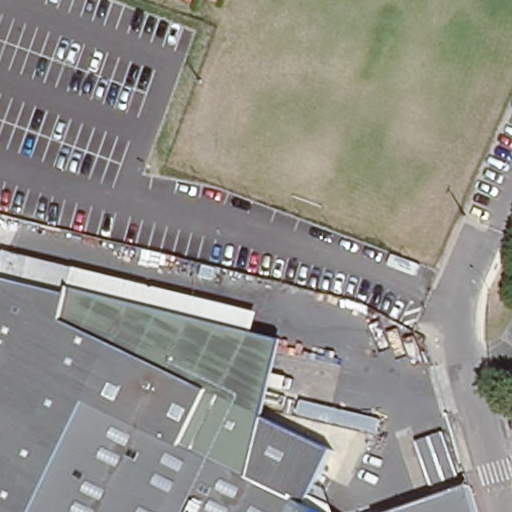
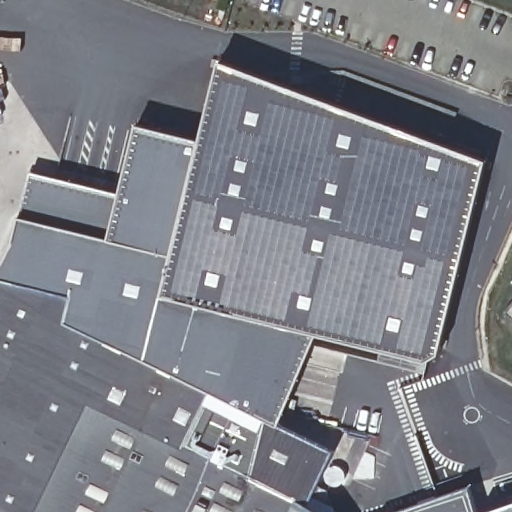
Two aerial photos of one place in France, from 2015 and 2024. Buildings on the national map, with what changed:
new [(15,230),(29,178),(109,195),(122,136),(190,151),(205,72),(465,164),(416,365),(289,342),(74,295),(0,276),(0,273),(15,230)]
demolished [(0,168),(0,104),(143,160),(114,231),(36,206),(45,184),(0,168)]
unchanged [(326,512),(0,512),(0,276),(74,295),(62,319),(267,415),(250,474),(326,512)]
unchanged [(289,342),(267,415),(62,319),(74,295),(289,342)]
new [(512,317),(503,309),(512,300),(512,317)]
new [(318,485),(329,489),(336,507),(338,512),(327,512),(250,474),(267,415),(335,449),(318,485)]
unchanged [(480,498),(485,512),(400,512),(478,489),(480,498)]
new [(512,512),(486,512),(512,502),(512,512)]

